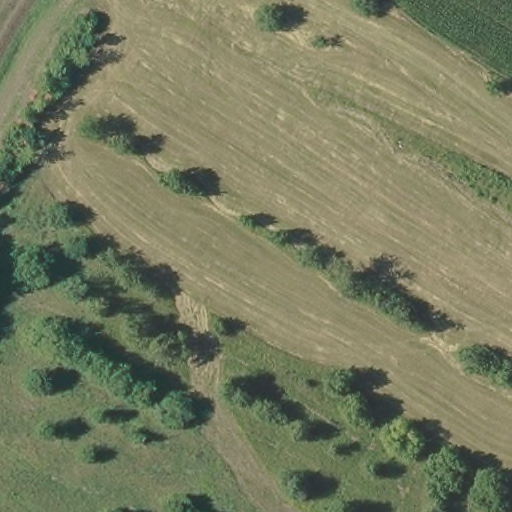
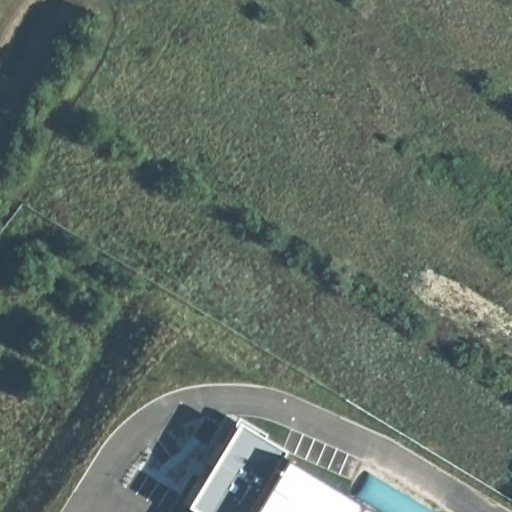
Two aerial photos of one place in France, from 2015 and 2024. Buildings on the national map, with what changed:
new [(279,446),(277,455),(371,512),(195,512),(179,503),(229,420),(279,446)]

